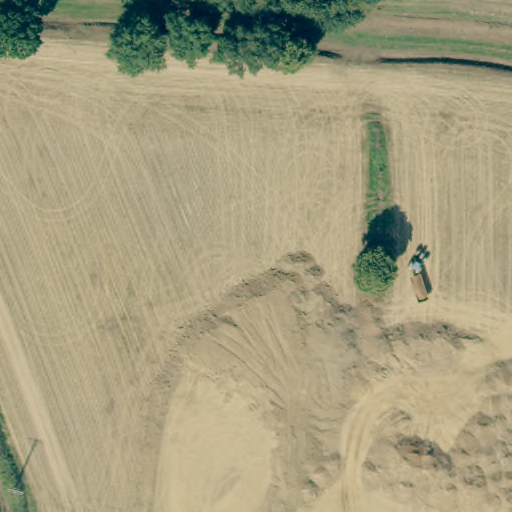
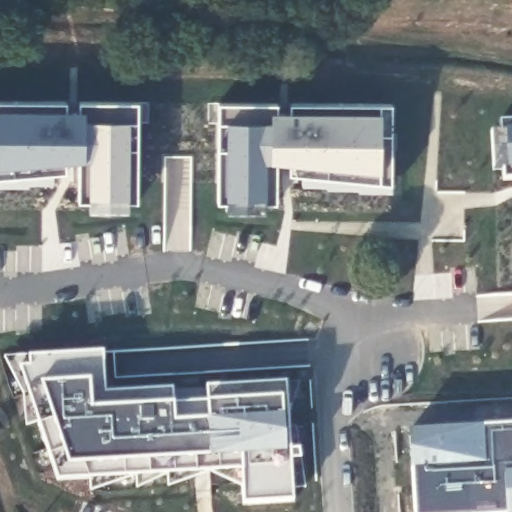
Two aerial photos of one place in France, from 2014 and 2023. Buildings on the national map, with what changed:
new [(91,200),(80,200),(84,159),(69,159),(67,173),(55,173),(54,183),(0,186),(0,101),(138,103),(137,200),(128,201),(128,209),(91,209),(91,200)]
new [(392,105),(392,183),(391,190),(360,190),(359,187),(328,188),(327,184),(303,185),(304,174),(276,171),(276,201),(265,201),(264,210),(229,210),(229,202),(218,202),(219,102),(392,105)]
new [(504,168),(495,168),(493,131),(502,130),(502,121),(512,121),(512,179),(504,179),(504,168)]
new [(117,355),(119,393),(286,381),(291,462),(59,483),(23,369),(117,355)]

